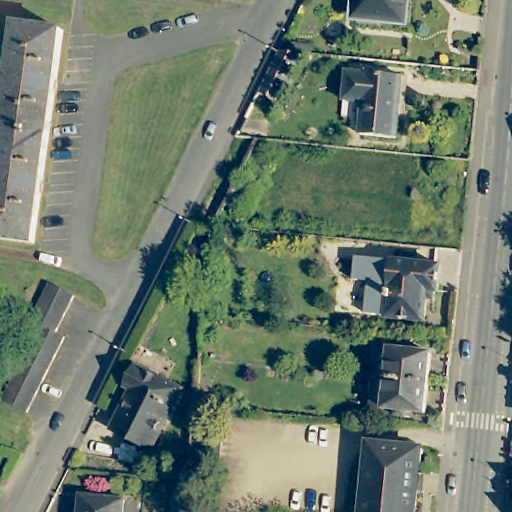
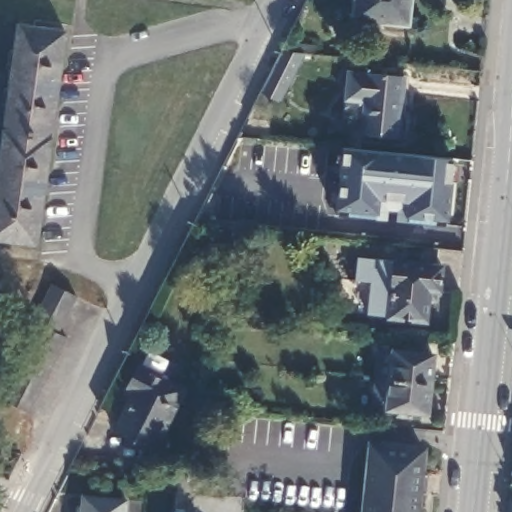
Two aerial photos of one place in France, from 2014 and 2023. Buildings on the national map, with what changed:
unchanged [(354,16),(356,0),(407,0),(404,21),(354,16)]
unchanged [(68,30),(39,242),(0,237),(0,168),(19,24),(68,30)]
unchanged [(300,51),(276,101),(276,100),(259,92),(280,50),(300,51)]
unchanged [(368,71),(405,75),(398,137),(362,133),(363,115),(365,101),(345,99),(348,69),(368,71)]
new [(448,221),(404,217),(406,202),(379,200),(378,213),(332,209),(339,148),(454,157),(448,221)]
unchanged [(449,262),(447,288),(436,286),(433,319),(395,315),(396,310),(367,307),(370,275),(362,275),(364,254),(449,262)]
unchanged [(73,293),(54,330),(64,335),(23,411),(0,399),(0,398),(27,343),(26,342),(36,323),(28,320),(49,281),(73,293)]
unchanged [(388,406),(374,405),(376,376),(379,345),(394,346),(434,350),(432,381),(429,410),(388,406)]
unchanged [(179,383),(150,443),(112,422),(132,385),(125,380),(135,360),(179,383)]
unchanged [(223,423),(218,470),(186,467),(190,420),(223,423)]
unchanged [(367,442),(420,447),(417,471),(424,471),(423,492),(415,491),(414,512),(361,512),(367,442)]
unchanged [(190,480),(187,512),(177,512),(180,479),(190,480)]
unchanged [(128,500),(127,512),(83,512),(84,496),(128,500)]

